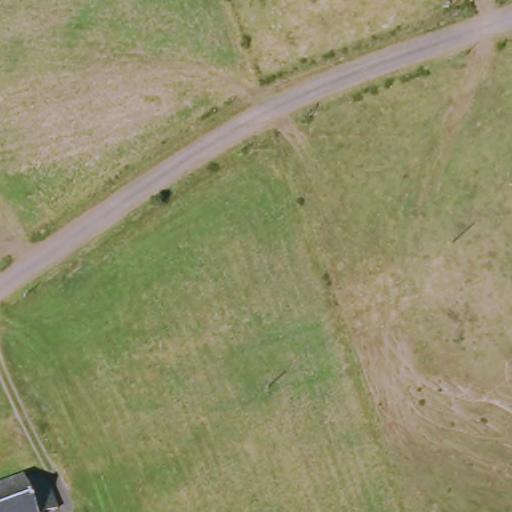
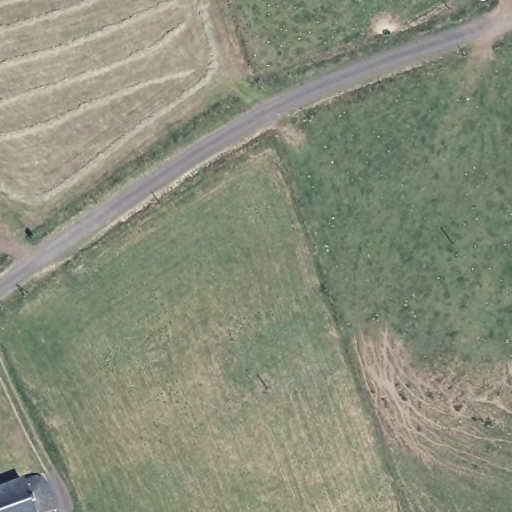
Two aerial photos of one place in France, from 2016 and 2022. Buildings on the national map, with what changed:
unchanged [(35,480),(47,512),(0,512),(0,492),(35,480)]

